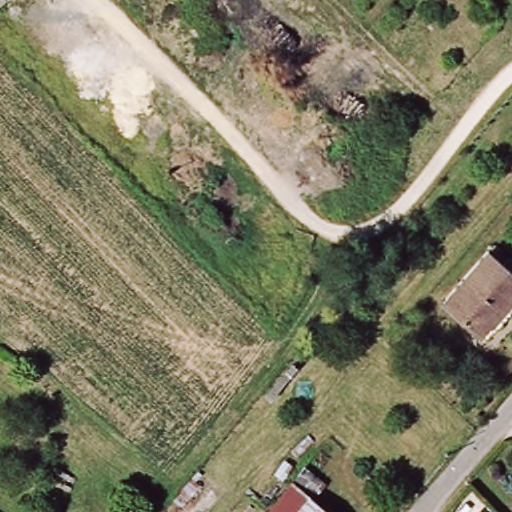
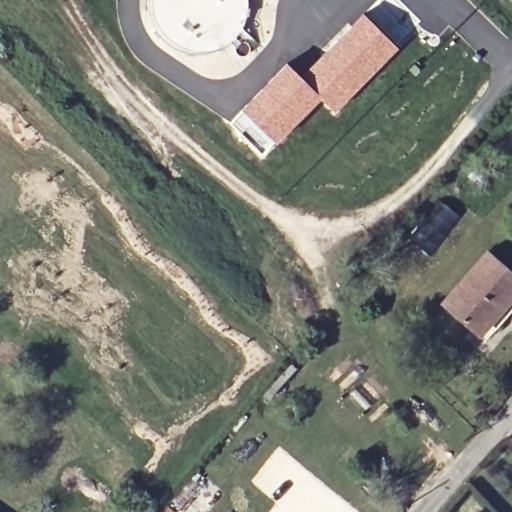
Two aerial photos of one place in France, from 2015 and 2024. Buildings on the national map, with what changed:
demolished [(0,0),(21,0),(7,17),(0,12),(0,0)]
new [(395,47),(334,110),(319,96),(260,153),(229,122),(243,111),(240,109),(285,63),(299,77),(361,13),(395,47)]
unchanged [(485,341),(441,307),(484,252),(512,275),(512,306),(485,341)]
unchanged [(309,502),(300,512),(273,512),(295,488),(309,502)]
unchanged [(320,512),(300,512),(309,502),(320,512)]
unchanged [(480,512),(478,512),(480,511),(480,512)]

